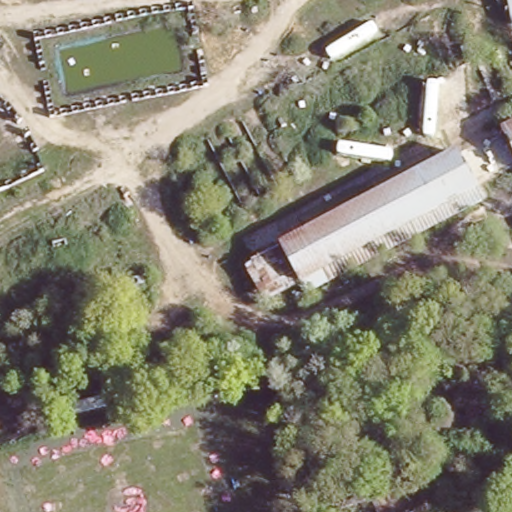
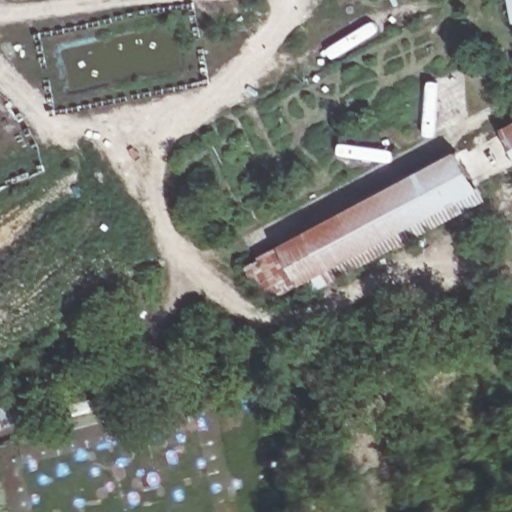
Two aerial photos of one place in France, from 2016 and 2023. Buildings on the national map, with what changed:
unchanged [(509,16),(506,0),(512,0),(512,16),(509,16)]
unchanged [(425,230),(305,293),(280,243),(512,121),(512,185),(425,230)]
unchanged [(358,512),(339,512),(335,492),(368,482),(370,497),(415,484),(425,512),(366,512),(365,510),(358,512)]

